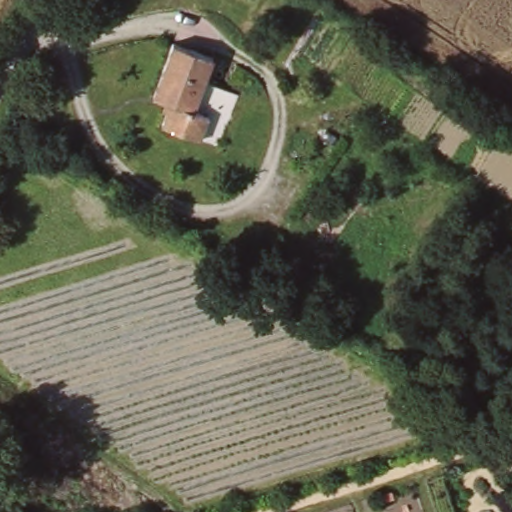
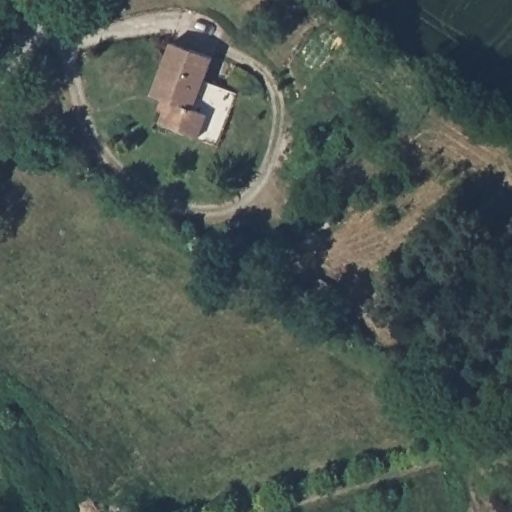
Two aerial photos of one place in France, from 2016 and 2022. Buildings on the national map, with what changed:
unchanged [(196,108),(210,112),(202,136),(166,122),(173,100),(155,94),(174,41),(215,55),(196,108)]

